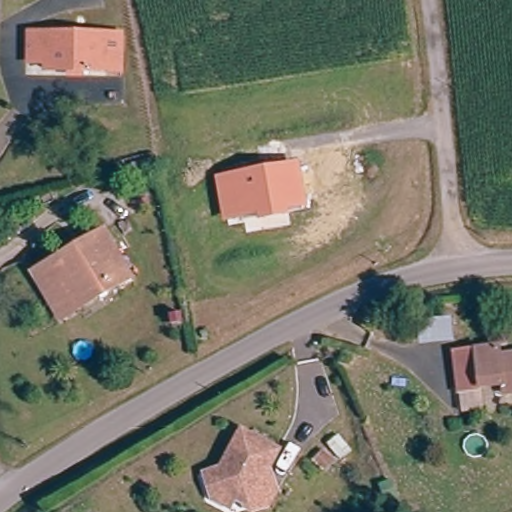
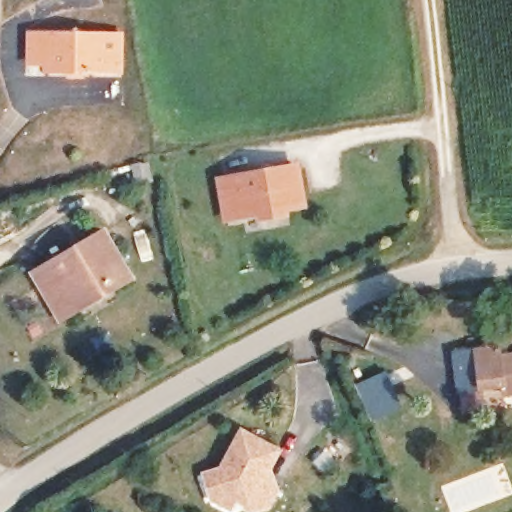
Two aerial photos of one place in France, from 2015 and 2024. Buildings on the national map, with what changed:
unchanged [(109,40),(110,76),(49,78),(48,72),(35,72),(34,42),(109,40)]
unchanged [(308,207),(290,211),(291,217),(259,222),(257,216),(224,221),(215,177),(300,161),(308,207)]
unchanged [(90,247),(93,254),(45,278),(65,315),(56,321),(29,272),(102,230),(105,239),(90,247)]
unchanged [(65,315),(45,278),(93,254),(90,247),(105,239),(127,282),(112,290),(79,307),(65,315)]
unchanged [(451,316),(454,342),(418,345),(417,320),(451,316)]
unchanged [(456,377),(455,369),(455,357),(457,357),(499,352),(500,362),(512,360),(512,398),(503,399),(501,390),(480,392),(458,395),(456,377)]
new [(356,384),(387,371),(403,407),(372,421),(356,384)]
unchanged [(338,450),(326,461),(312,446),(324,435),(338,450)]
unchanged [(200,480),(213,473),(234,437),(271,457),(260,477),(268,494),(262,505),(259,512),(241,512),(240,512),(241,510),(229,502),(223,512),(222,512),(206,502),(200,480)]

